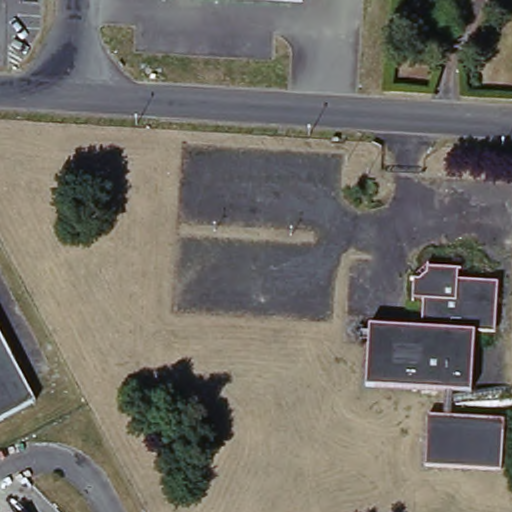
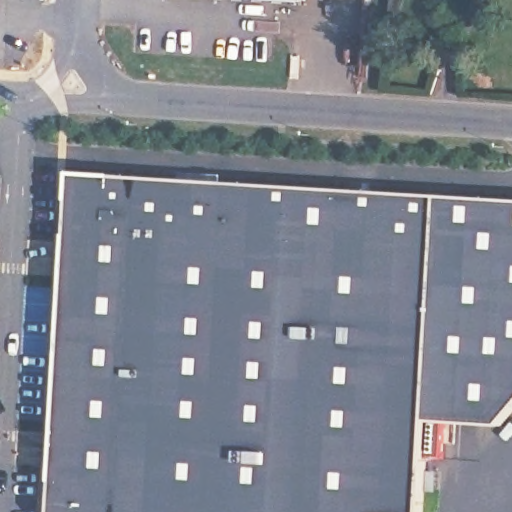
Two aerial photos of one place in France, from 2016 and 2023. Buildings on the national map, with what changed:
unchanged [(302,4),(259,0),(302,0),(302,4)]
new [(506,421),(425,423),(427,512),(47,512),(68,165),(512,191),(512,414),(506,421)]
demolished [(415,315),(416,296),(422,297),(431,272),(431,267),(463,271),(461,281),(501,285),(497,335),(479,334),(473,395),(455,394),(455,399),(512,403),(512,409),(454,406),(453,418),(506,422),(503,472),(427,467),(430,417),(445,417),(447,392),(368,388),(372,342),(374,327),(424,330),(425,330),(426,317),(415,315)]
demolished [(0,418),(0,336),(34,400),(0,418)]

